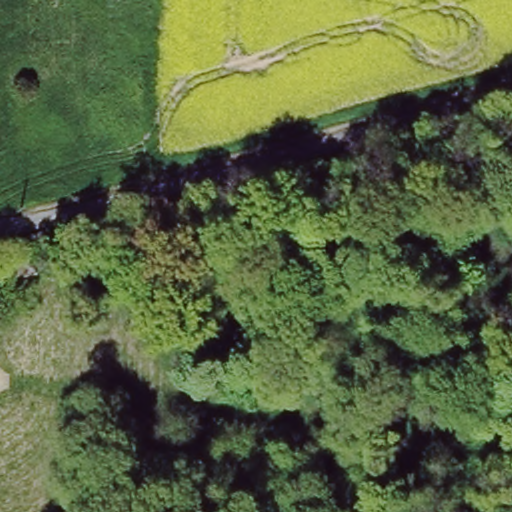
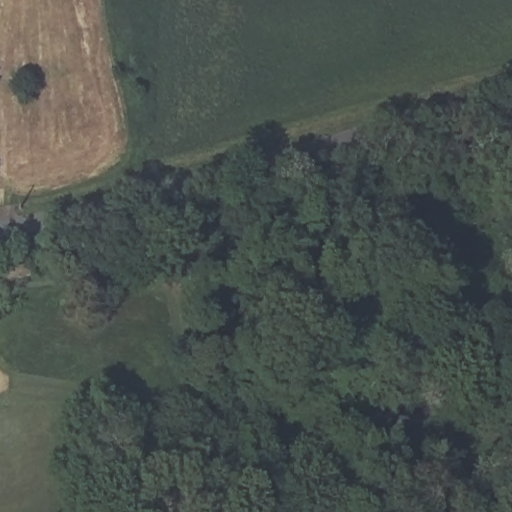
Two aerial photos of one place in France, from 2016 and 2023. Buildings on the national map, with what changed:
unchanged [(23,254),(35,269),(0,283),(3,261),(23,254)]

